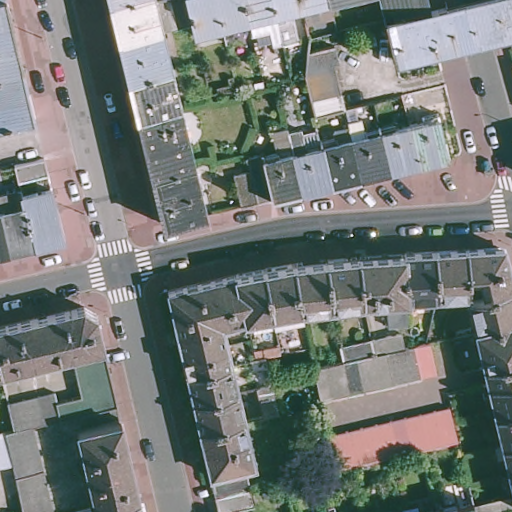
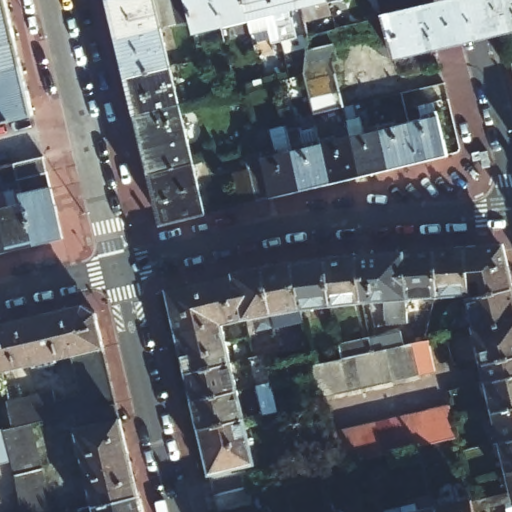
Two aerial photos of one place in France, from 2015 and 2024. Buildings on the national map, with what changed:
unchanged [(6,0),(11,21),(0,23),(0,0),(6,0)]
unchanged [(112,0),(110,1),(110,0),(112,0)]
unchanged [(214,0),(221,29),(194,35),(191,22),(176,26),(161,29),(171,68),(128,77),(119,40),(110,1),(112,0),(214,0)]
unchanged [(284,47),(283,42),(281,42),(271,44),(269,32),(251,35),(248,22),(221,29),(214,0),(339,0),(329,2),(332,17),(305,22),(302,9),(291,12),(293,19),(299,44),(284,47)]
unchanged [(384,18),(380,0),(424,0),(426,8),(384,18)]
unchanged [(495,0),(503,34),(437,50),(426,8),(458,0),(495,0)]
unchanged [(512,0),(512,31),(503,34),(495,0),(512,0)]
unchanged [(426,8),(437,50),(394,60),(384,18),(426,8)]
unchanged [(11,21),(18,45),(0,49),(0,23),(11,21)]
unchanged [(307,47),(332,42),(337,64),(332,65),(343,110),(314,117),(304,78),(307,47)]
unchanged [(18,45),(19,52),(23,69),(0,74),(0,49),(18,45)]
unchanged [(512,63),(512,67),(511,64),(512,63)]
unchanged [(137,113),(128,77),(171,68),(180,107),(138,117),(137,113)]
unchanged [(0,101),(0,74),(23,69),(29,94),(0,101)]
unchanged [(29,94),(34,114),(34,117),(23,120),(2,125),(0,125),(0,101),(29,94)]
unchanged [(152,176),(144,145),(138,117),(180,107),(194,166),(152,176)]
unchanged [(417,122),(416,119),(433,115),(444,157),(413,165),(404,126),(417,122)]
unchanged [(256,156),(256,157),(271,153),(266,130),(280,127),(281,131),(296,129),(296,133),(313,130),(314,139),(316,142),(329,140),(327,131),(343,127),(341,122),(356,119),(359,132),(374,129),(384,172),(369,175),(354,179),(326,186),(311,189),(296,192),(266,200),(253,203),(238,207),(231,178),(245,174),(241,159),(256,156)]
unchanged [(383,127),(389,125),(389,129),(404,126),(413,165),(384,172),(374,129),(383,127)]
unchanged [(44,159),(45,164),(48,175),(18,182),(15,166),(44,159)]
unchanged [(194,166),(206,216),(164,226),(156,191),(152,176),(194,166)]
unchanged [(0,215),(0,213),(0,195),(20,190),(23,198),(52,191),(55,204),(63,240),(34,247),(20,250),(10,252),(0,255),(0,215)]
unchanged [(469,283),(466,252),(498,250),(502,251),(503,252),(504,254),(512,287),(512,292),(483,298),(480,283),(469,283)]
unchanged [(435,254),(466,252),(469,283),(469,296),(466,296),(462,297),(446,297),(443,298),(439,298),(435,254)]
unchanged [(439,298),(432,298),(433,311),(410,315),(407,301),(404,256),(430,254),(435,254),(439,298)]
unchanged [(404,256),(407,301),(408,324),(388,325),(387,302),(363,303),(359,258),(404,256)]
unchanged [(363,303),(332,307),(326,262),(359,258),(363,303)]
unchanged [(332,307),(301,310),(294,267),(326,262),(332,307)]
unchanged [(301,310),(306,331),(278,337),(273,316),(271,307),(264,272),(294,267),(301,310)]
unchanged [(264,272),(271,307),(273,316),(246,321),(236,277),(264,272)]
unchanged [(246,321),(229,325),(223,327),(178,337),(169,292),(236,277),(246,321)]
unchanged [(483,298),(512,292),(512,324),(477,332),(469,302),(483,298)]
unchanged [(78,312),(91,320),(113,411),(102,413),(55,425),(51,407),(76,402),(66,362),(0,378),(0,332),(78,312)]
unchanged [(489,384),(477,332),(512,324),(512,379),(503,381),(489,384)]
unchanged [(178,337),(223,327),(226,344),(232,366),(204,372),(188,376),(178,337)]
unchanged [(329,365),(343,362),(340,347),(371,341),(402,333),(405,348),(415,346),(417,346),(425,343),(429,342),(437,372),(438,373),(423,377),(408,380),(399,382),(393,383),(381,386),(379,387),(365,390),(351,393),(336,396),(323,399),(321,400),(314,368),(329,365)]
unchanged [(279,413),(277,414),(264,417),(258,390),(251,361),(255,360),(263,358),(266,358),(272,386),(273,389),(279,413)]
unchanged [(188,376),(204,372),(232,366),(238,394),(194,405),(188,376)]
unchanged [(503,381),(512,379),(512,411),(496,415),(489,384),(503,381)]
unchanged [(238,394),(245,422),(240,423),(214,429),(201,432),(198,420),(194,405),(238,394)]
unchanged [(49,399),(51,407),(55,425),(51,426),(38,428),(28,431),(10,436),(4,408),(49,399)]
unchanged [(361,429),(376,426),(391,422),(404,419),(405,418),(419,416),(434,412),(450,408),(452,415),(454,424),(458,441),(442,445),(428,448),(424,449),(413,452),(399,455),(389,457),(384,458),(369,462),(354,466),(336,470),(329,437),(347,432),(361,429)]
unchanged [(512,411),(512,443),(502,445),(496,415),(512,411)]
unchanged [(123,425),(138,488),(139,497),(138,497),(95,507),(78,432),(121,422),(123,425)]
unchanged [(214,429),(240,423),(245,422),(256,466),(211,477),(201,432),(214,429)]
unchanged [(0,438),(10,436),(28,431),(33,451),(47,512),(17,512),(10,478),(7,467),(0,469),(0,438)]
unchanged [(512,443),(512,474),(509,475),(502,445),(512,443)]
unchanged [(254,507),(229,512),(220,512),(216,498),(213,482),(246,474),(251,490),(254,507)]
unchanged [(512,488),(509,475),(512,474),(512,488)]
unchanged [(85,510),(95,507),(138,497),(142,512),(86,512),(85,510)]
unchanged [(473,507),(474,509),(474,512),(451,512),(473,507)]
unchanged [(416,511),(416,512),(409,512),(416,511)]

